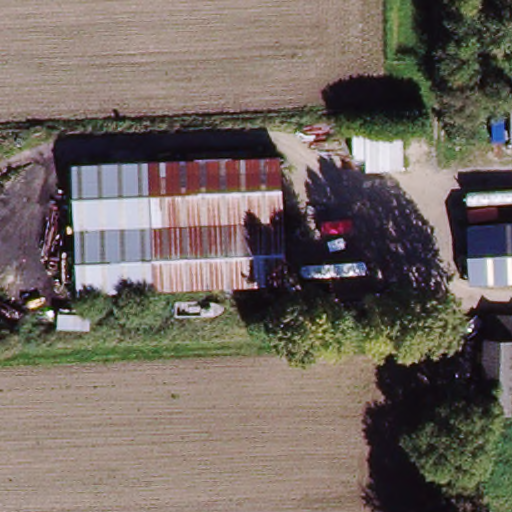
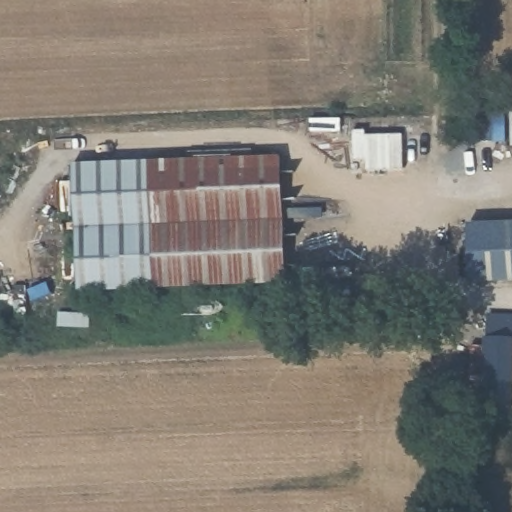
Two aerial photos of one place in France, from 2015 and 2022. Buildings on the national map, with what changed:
unchanged [(482,92),(482,109),(452,111),(452,108),(451,93),(482,92)]
unchanged [(286,285),(78,293),(73,171),(281,162),(286,285)]
unchanged [(512,225),(512,281),(471,283),(470,227),(512,225)]
unchanged [(499,312),(512,313),(512,341),(497,340),(499,312)]
unchanged [(512,341),(512,409),(494,407),(497,340),(512,341)]

